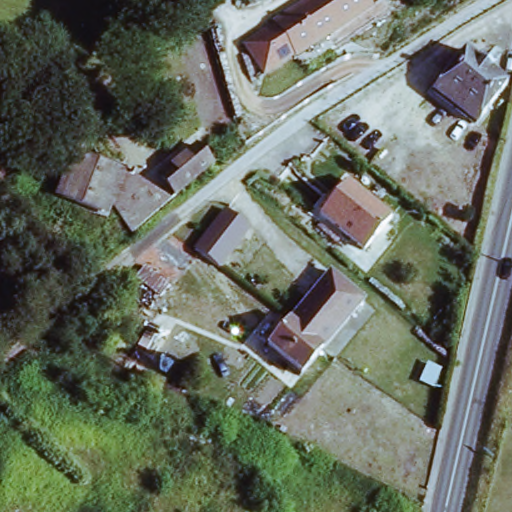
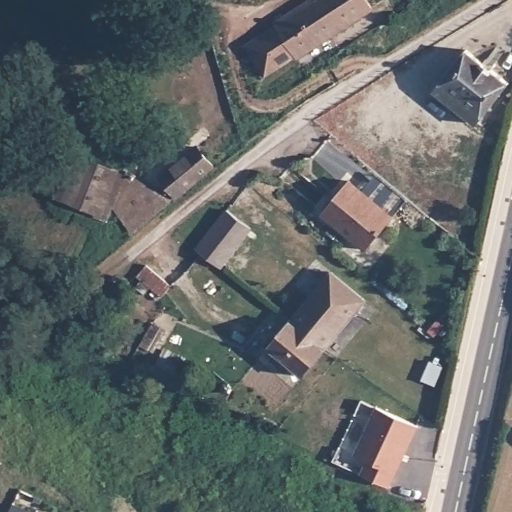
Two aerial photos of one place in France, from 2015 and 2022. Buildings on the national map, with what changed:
unchanged [(371,6),(332,32),(297,55),(281,32),(276,25),(313,0),(367,0),(371,6)]
unchanged [(281,32),(297,55),(264,77),(244,47),(265,32),(276,25),(281,32)]
unchanged [(506,86),(475,126),(432,94),(463,53),(506,86)]
unchanged [(156,177),(205,138),(223,157),(172,198),(156,177)]
unchanged [(54,200),(67,155),(132,180),(109,225),(54,200)]
unchanged [(172,198),(132,239),(109,225),(132,180),(172,198)]
unchanged [(317,215),(346,182),(389,220),(361,252),(317,215)]
unchanged [(249,232),(241,242),(217,271),(197,255),(193,252),(218,222),(227,213),(249,232)]
unchanged [(328,275),(362,303),(342,327),(308,297),(328,275)]
unchanged [(308,297),(342,327),(322,350),(312,342),(287,322),(308,297)]
unchanged [(312,342),(322,350),(300,376),(266,347),(287,322),(312,342)]
unchanged [(166,330),(157,351),(142,346),(152,324),(166,330)]
new [(380,408),(419,427),(391,487),(364,476),(371,462),(357,456),(380,408)]
new [(34,512),(10,512),(14,503),(34,512)]

